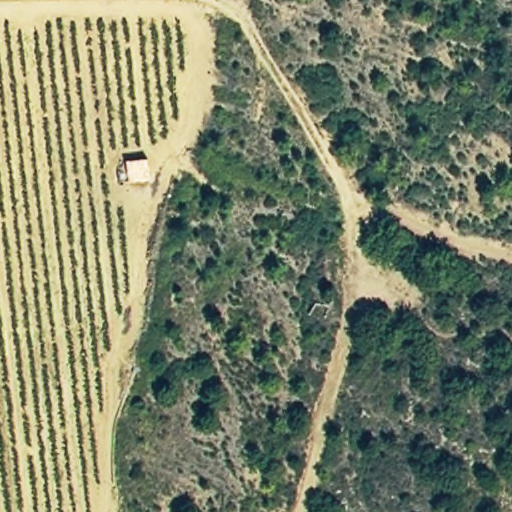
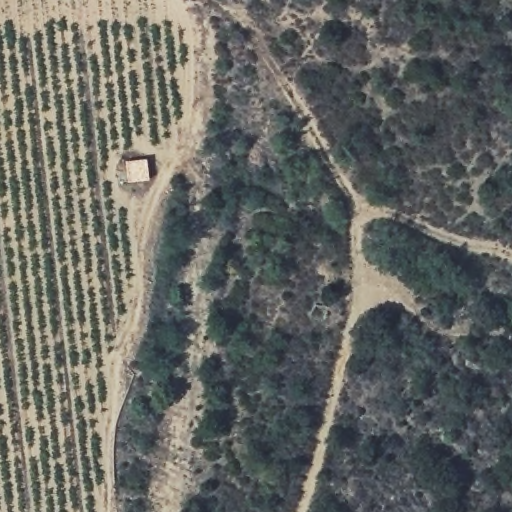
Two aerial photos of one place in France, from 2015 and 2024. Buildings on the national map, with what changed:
unchanged [(127,159),(147,157),(148,180),(129,180),(127,159)]

